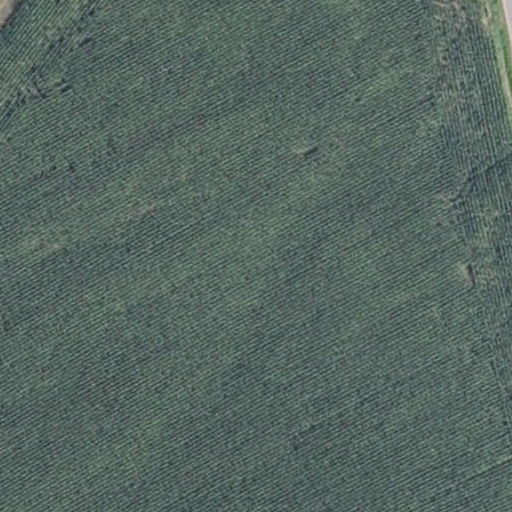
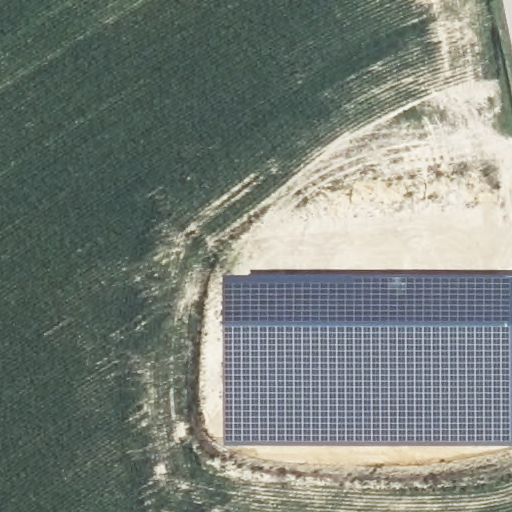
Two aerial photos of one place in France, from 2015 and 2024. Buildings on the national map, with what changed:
new [(224,285),(512,286),(512,451),(224,450),(224,285)]

